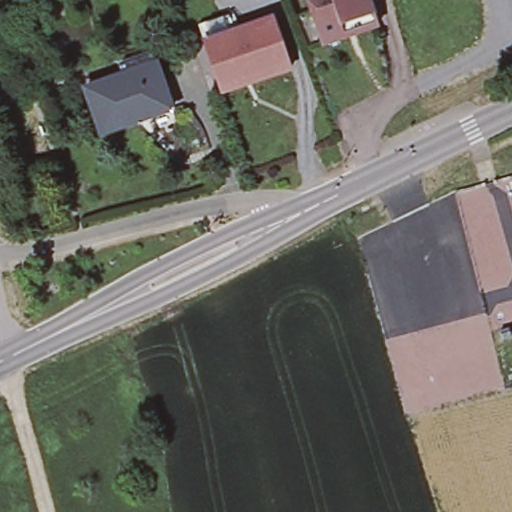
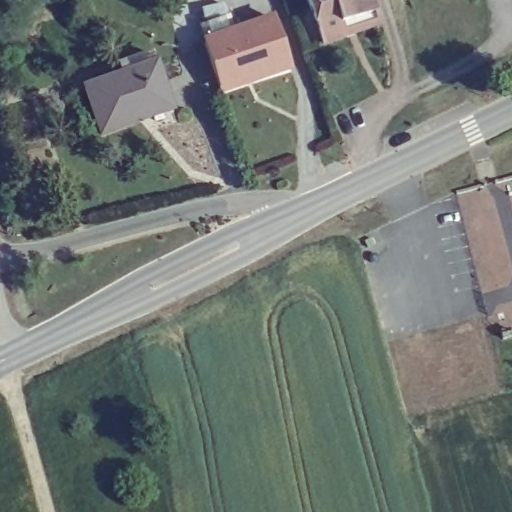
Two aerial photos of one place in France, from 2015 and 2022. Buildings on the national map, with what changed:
unchanged [(321,42),(306,0),(370,0),(374,11),(373,12),(378,24),(345,35),(321,42)]
unchanged [(219,85),(203,40),(272,15),(291,66),(257,79),(221,90),(219,85)]
unchanged [(135,113),(137,119),(99,132),(84,85),(123,72),(119,63),(151,51),(155,61),(168,102),(135,113)]

